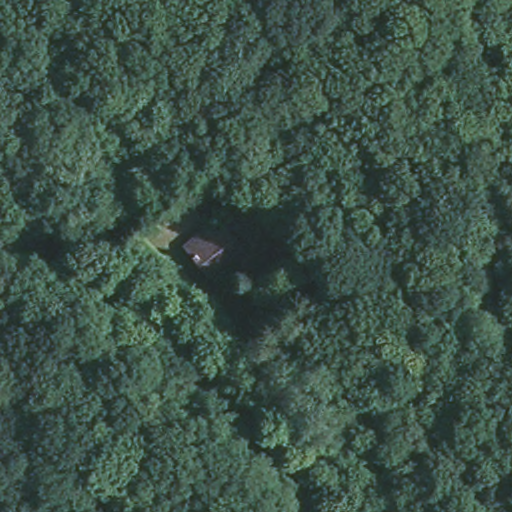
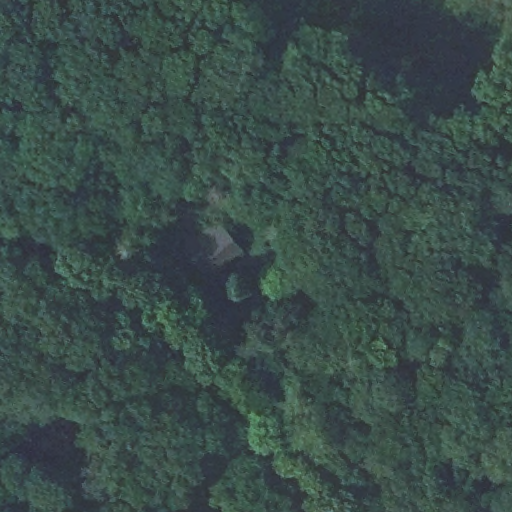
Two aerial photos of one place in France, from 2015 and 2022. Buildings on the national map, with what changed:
unchanged [(247,248),(234,262),(248,284),(229,299),(186,238),(226,209),(247,248)]

